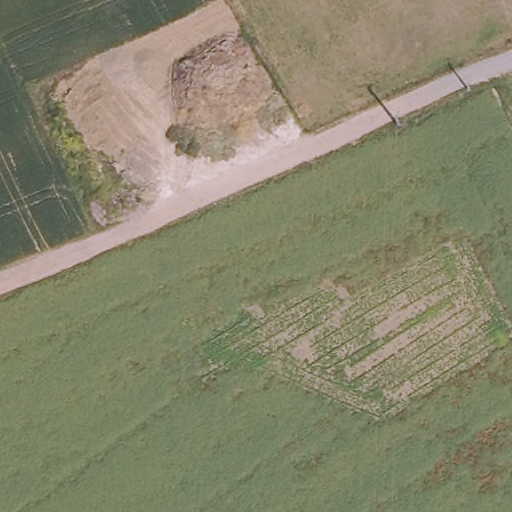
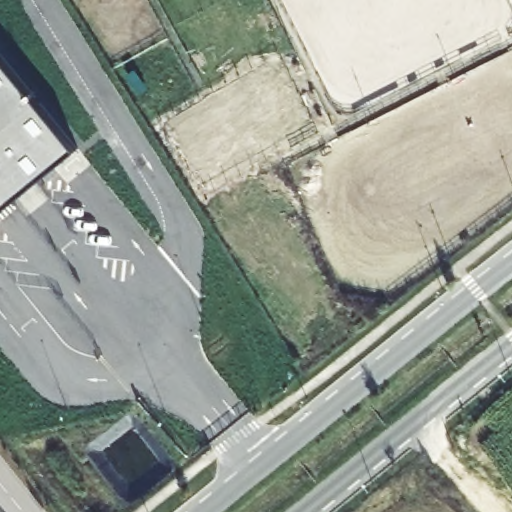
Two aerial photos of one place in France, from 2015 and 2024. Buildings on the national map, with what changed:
new [(0,210),(0,55),(79,147),(0,210)]

